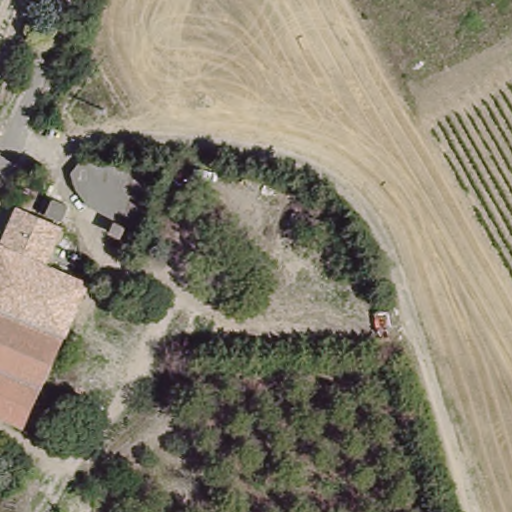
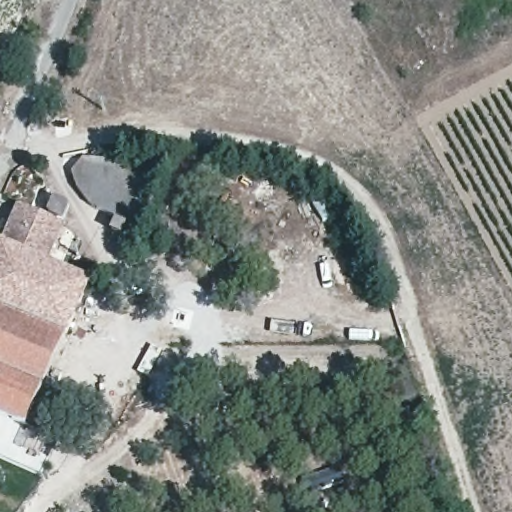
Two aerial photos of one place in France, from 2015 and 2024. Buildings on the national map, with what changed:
unchanged [(105,218),(73,175),(89,157),(151,165),(136,218),(105,218)]
unchanged [(62,216),(49,210),(56,194),(69,200),(62,216)]
unchanged [(60,436),(25,420),(0,409),(0,247),(19,204),(64,222),(49,261),(90,279),(35,400),(69,416),(60,436)]

